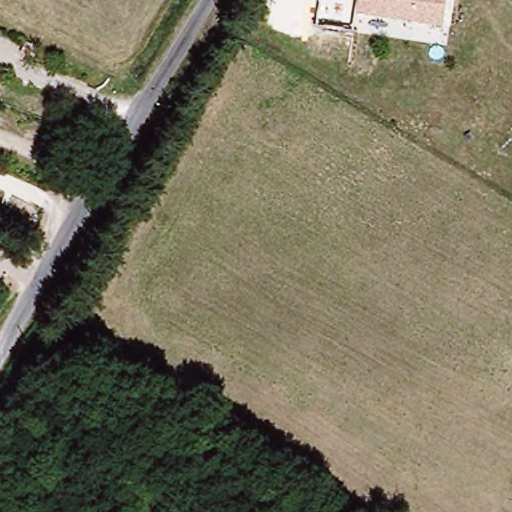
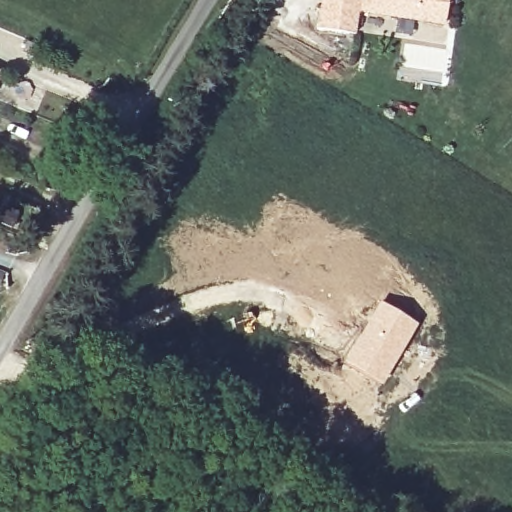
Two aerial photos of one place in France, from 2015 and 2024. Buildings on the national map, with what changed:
unchanged [(319,0),(360,0),(358,15),(355,34),(314,29),(319,0)]
unchanged [(360,0),(448,0),(445,24),(358,15),(360,0)]
new [(378,301),(417,325),(380,385),(340,363),(378,301)]

